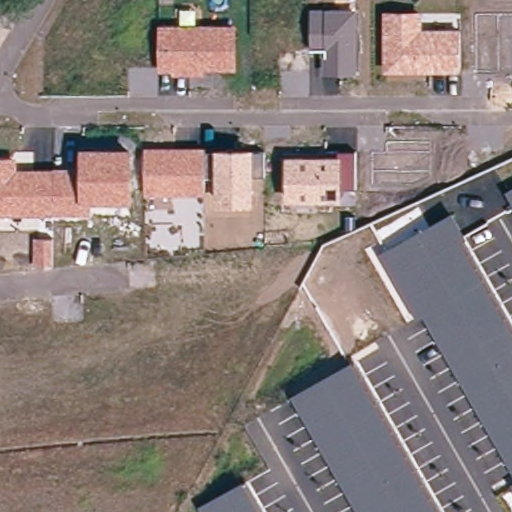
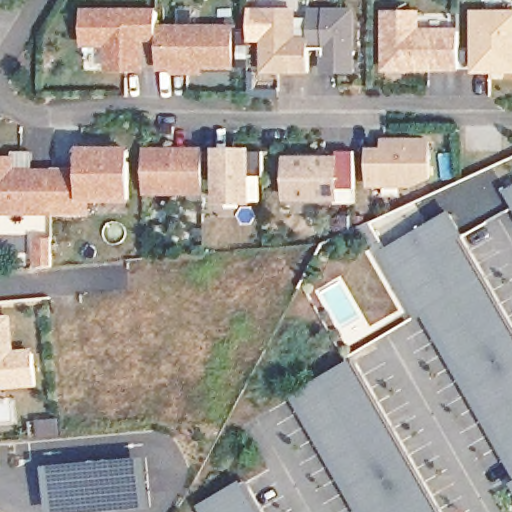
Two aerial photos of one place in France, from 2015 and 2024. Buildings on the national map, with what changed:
new [(158,42),(146,42),(146,73),(107,72),(107,45),(84,45),(83,7),(158,8),(158,25),(158,42)]
new [(299,9),(298,36),(310,36),(310,51),(311,74),(262,74),(263,7),(299,9)]
unchanged [(180,26),(181,9),(195,9),(195,26),(236,25),(237,71),(206,71),(206,75),(172,75),(172,71),(159,71),(158,25),(180,26)]
unchanged [(355,9),(355,75),(321,75),(321,50),(310,51),(310,10),(355,9)]
unchanged [(421,10),(422,29),(460,30),(461,72),(384,72),(382,11),(421,10)]
new [(512,74),(473,75),(474,10),(512,10),(512,74)]
new [(433,137),(434,180),(413,187),(402,188),(402,200),(382,200),(382,187),(369,187),(368,147),(384,147),(384,137),(433,137)]
unchanged [(17,156),(17,170),(80,168),(80,147),(132,148),(132,204),(92,205),(91,217),(0,217),(0,157),(17,156)]
unchanged [(204,149),(264,150),(264,177),(252,177),(253,205),(216,205),(216,177),(204,177),(204,196),(145,198),(144,147),(204,149)]
unchanged [(337,156),(338,150),(355,152),(356,190),(342,190),(343,202),(285,202),(285,156),(337,156)]
unchanged [(512,189),(512,202),(506,192),(512,189)]
unchanged [(512,471),(422,316),(417,320),(379,252),(452,211),(512,317),(512,471)]
new [(21,327),(25,361),(43,360),(46,391),(18,394),(17,386),(0,388),(0,329),(21,327)]
unchanged [(443,512),(357,512),(291,397),(355,361),(443,512)]
new [(58,417),(59,437),(34,439),(32,420),(58,417)]
new [(91,460),(143,456),(151,508),(127,512),(49,512),(45,465),(91,460)]
unchanged [(264,512),(202,512),(198,506),(246,481),(264,512)]
unchanged [(512,483),(512,484),(511,483),(512,483)]

